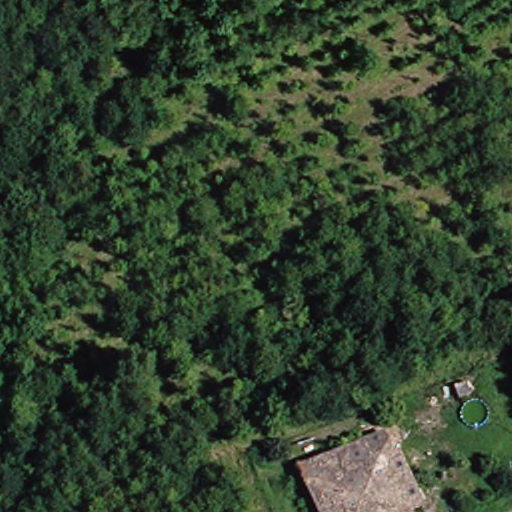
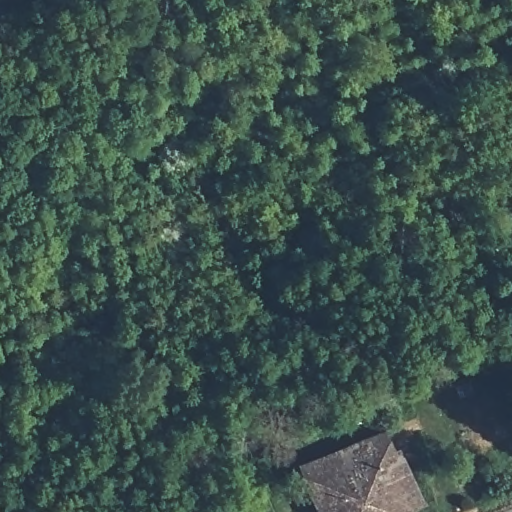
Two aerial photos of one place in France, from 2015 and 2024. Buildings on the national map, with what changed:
unchanged [(293,470),(373,435),(386,460),(393,457),(410,505),(401,512),(310,512),(293,470)]

